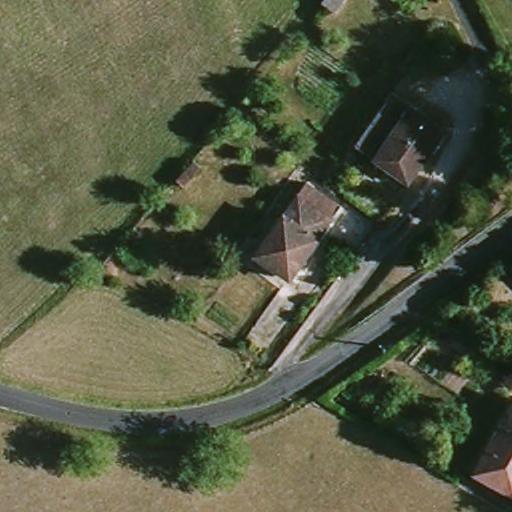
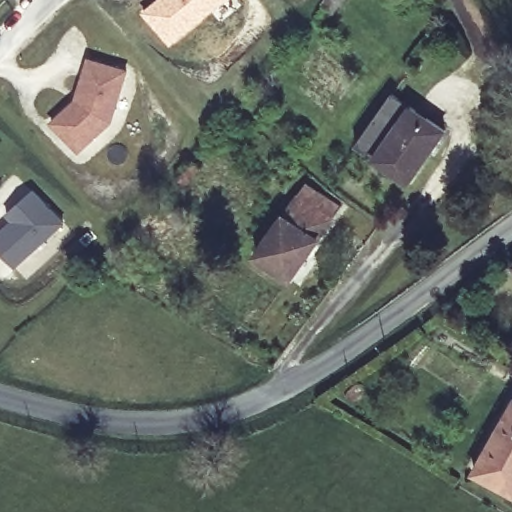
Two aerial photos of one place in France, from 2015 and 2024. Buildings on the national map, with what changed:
new [(227,0),(169,48),(139,13),(154,0),(227,0)]
new [(77,94),(88,59),(125,71),(109,123),(77,152),(50,124),(75,101),(77,94)]
unchanged [(440,137),(407,184),(360,150),(394,104),(440,137)]
new [(5,213),(32,189),(62,223),(12,268),(0,254),(0,231),(12,220),(5,213)]
unchanged [(297,272),(264,248),(305,192),(338,217),(297,272)]
unchanged [(509,268),(512,265),(512,272),(509,268)]
unchanged [(512,411),(512,497),(477,479),(512,411)]

